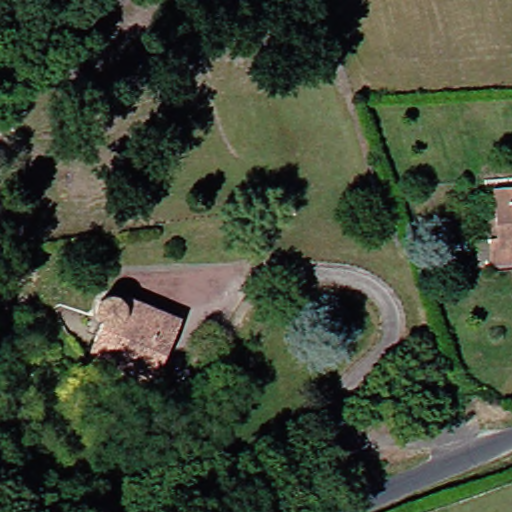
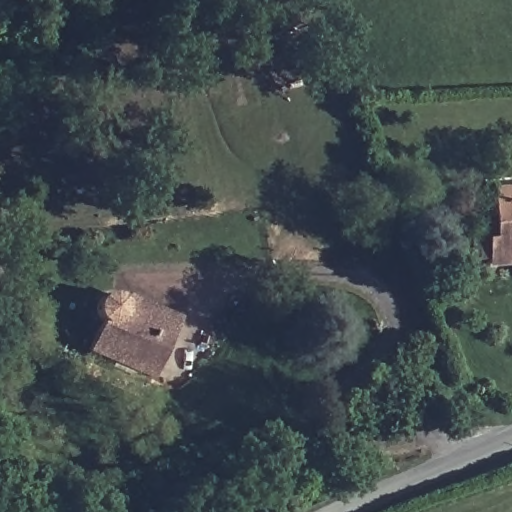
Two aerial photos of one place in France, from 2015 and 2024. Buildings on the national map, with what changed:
unchanged [(497,232),(506,232),(506,191),(512,191),(512,259),(497,260),(497,232)]
unchanged [(112,312),(110,308),(110,303),(111,298),(114,295),(119,292),(123,291),(128,291),(132,293),(136,297),(140,306),(191,326),(170,374),(109,352),(122,321),(114,315),(112,312)]

